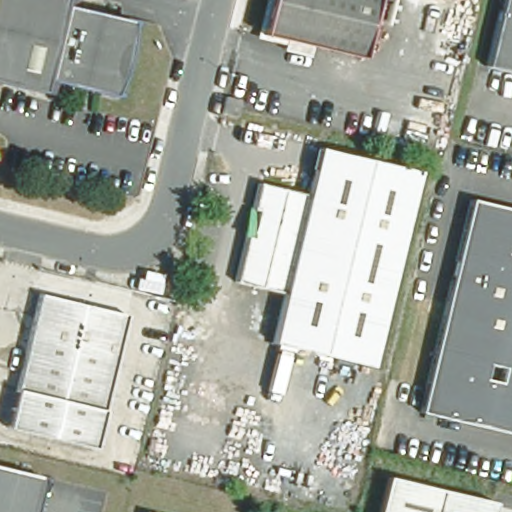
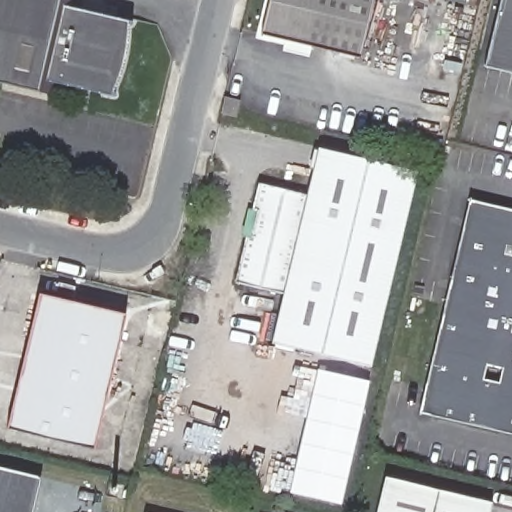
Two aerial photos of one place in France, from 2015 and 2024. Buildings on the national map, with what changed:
unchanged [(76,5),(127,18),(128,18),(129,18),(130,19),(130,20),(130,21),(129,22),(129,23),(128,23),(127,24),(126,23),(126,26),(126,29),(125,31),(125,34),(125,37),(124,39),(124,42),(124,45),(123,47),(123,50),(122,53),(121,55),(121,56),(121,58),(120,60),(120,63),(119,66),(118,68),(117,71),(117,73),(116,76),(115,78),(114,81),(113,83),(112,86),(111,88),(112,89),(113,90),(113,91),(112,92),(111,93),(110,93),(109,93),(59,81),(56,93),(0,80),(0,0),(78,0),(76,5)]
unchanged [(358,50),(262,26),(268,0),(370,0),(358,50)]
unchanged [(512,71),(486,64),(502,0),(512,0),(512,71)]
unchanged [(240,100),(238,109),(236,117),(220,113),(224,96),(240,100)]
unchanged [(310,195),(323,146),(417,169),(370,364),(293,346),(275,342),(286,294),(236,281),(249,229),(242,227),(247,207),(254,209),(260,183),(310,195)]
unchanged [(467,193),(512,204),(512,429),(415,405),(467,193)]
unchanged [(96,442),(7,421),(40,286),(129,308),(96,442)]
new [(290,494),(317,369),(368,381),(341,506),(290,494)]
unchanged [(0,512),(0,468),(41,478),(33,512),(0,512)]
unchanged [(493,503),(491,512),(373,512),(381,477),(493,503)]
unchanged [(157,512),(141,512),(142,508),(157,512)]

